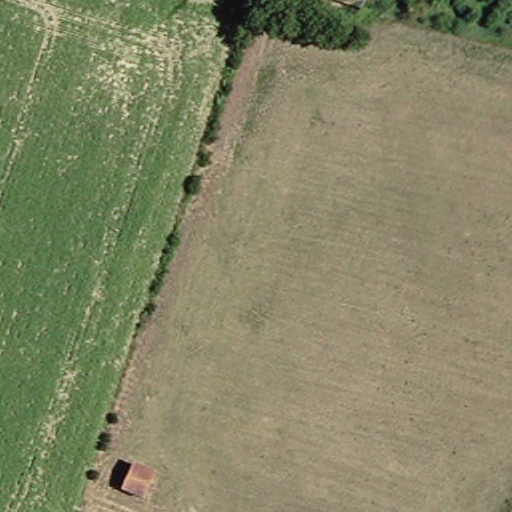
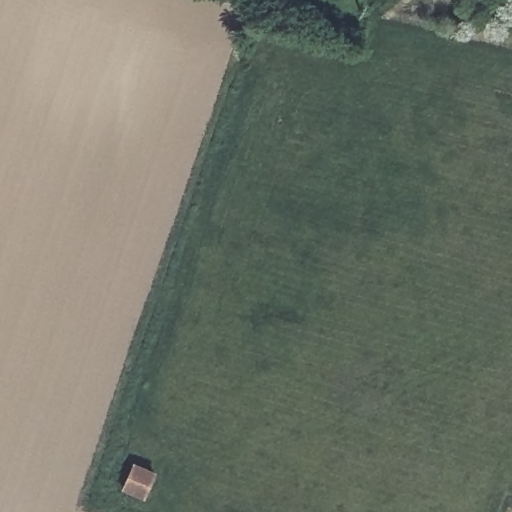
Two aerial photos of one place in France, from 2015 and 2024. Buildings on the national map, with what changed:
unchanged [(147,501),(124,492),(132,467),(156,476),(147,501)]

